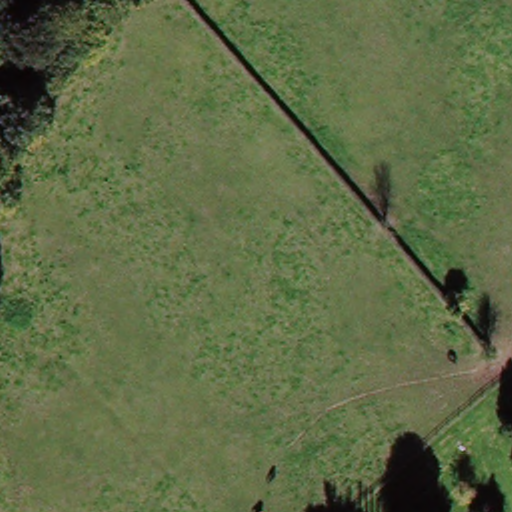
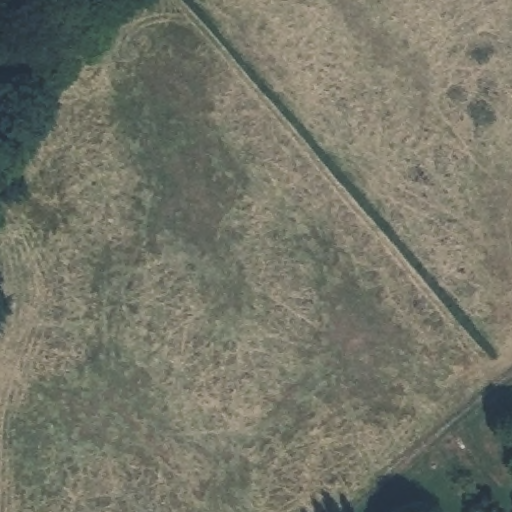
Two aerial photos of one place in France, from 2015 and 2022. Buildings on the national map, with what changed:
[]

